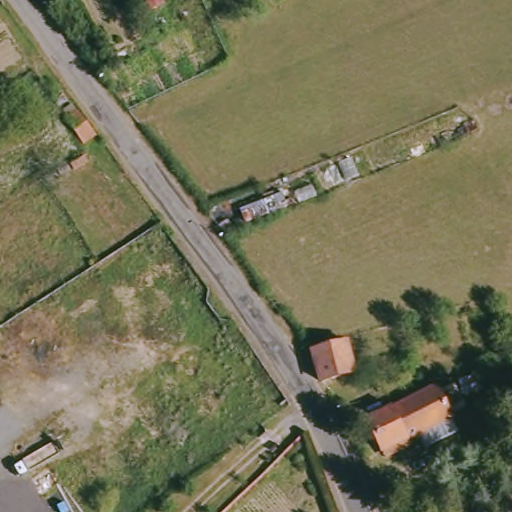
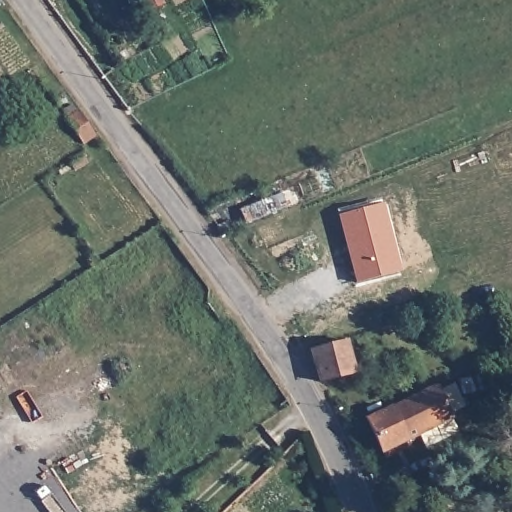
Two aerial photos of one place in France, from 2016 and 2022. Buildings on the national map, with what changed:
unchanged [(61,115),(72,109),(88,131),(77,139),(61,115)]
unchanged [(75,171),(71,165),(85,157),(88,164),(75,171)]
new [(375,202),(397,270),(355,282),(333,216),(375,202)]
unchanged [(346,341),(355,372),(320,381),(312,350),(346,341)]
unchanged [(380,452),(377,446),(363,413),(431,382),(453,426),(420,442),(413,428),(400,435),(402,441),(380,452)]

